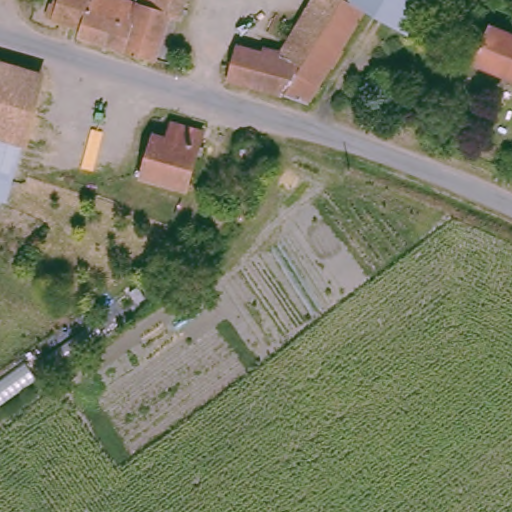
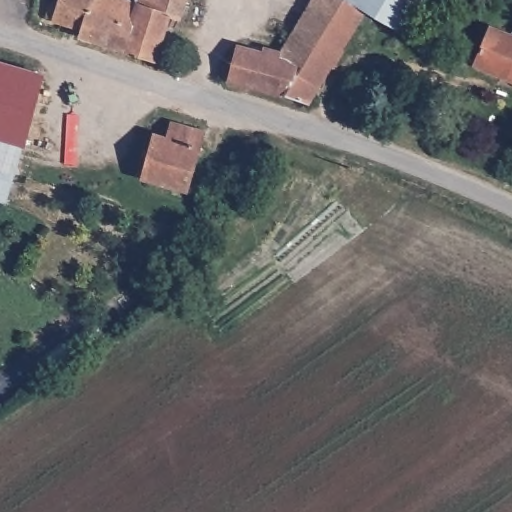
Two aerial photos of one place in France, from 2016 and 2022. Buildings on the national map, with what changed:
unchanged [(47,0),(177,0),(173,9),(164,6),(147,50),(97,36),(43,11),(47,0)]
unchanged [(275,51),(307,0),(335,0),(298,58),(275,51)]
unchanged [(335,0),(359,0),(302,95),(283,89),(298,58),(335,0)]
unchanged [(366,0),(416,0),(403,21),(366,0)]
unchanged [(472,56),(488,22),(512,33),(512,73),(472,56)]
unchanged [(235,41),(275,51),(298,58),(283,89),(225,71),(235,41)]
unchanged [(0,53),(47,66),(22,141),(2,194),(0,194),(0,53)]
unchanged [(188,190),(147,177),(161,136),(172,140),(177,127),(195,133),(190,146),(203,150),(188,190)]

